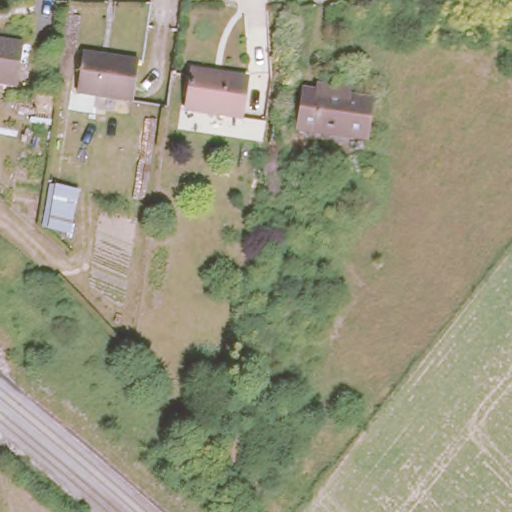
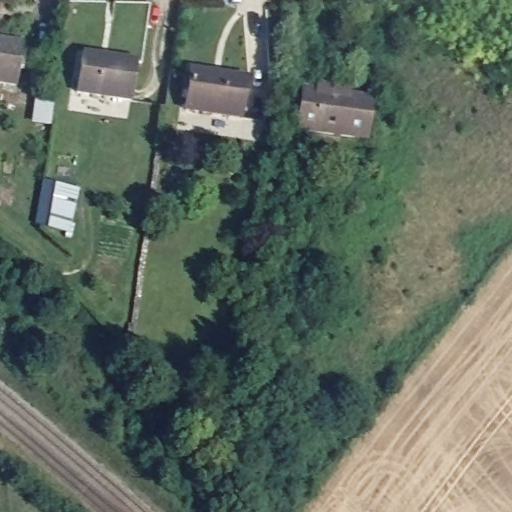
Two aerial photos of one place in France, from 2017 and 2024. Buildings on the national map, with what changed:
unchanged [(19,81),(0,78),(0,36),(24,40),(19,81)]
unchanged [(82,52),(138,61),(135,99),(77,90),(82,52)]
unchanged [(192,62),(250,70),(244,107),(187,100),(192,62)]
unchanged [(300,93),(312,94),(312,87),(336,88),(334,96),(372,100),(367,139),(296,131),(300,93)]
unchanged [(52,181),(77,185),(67,232),(44,227),(52,181)]
unchanged [(227,420),(252,423),(245,483),(220,478),(227,420)]

